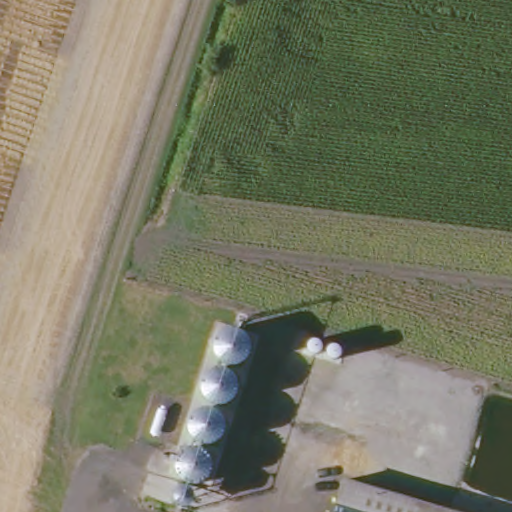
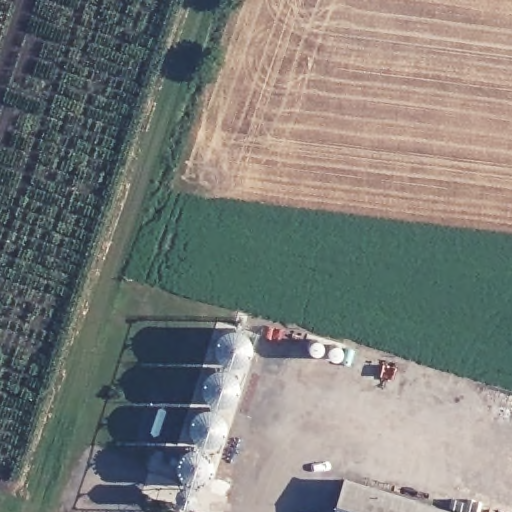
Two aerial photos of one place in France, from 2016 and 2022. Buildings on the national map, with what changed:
unchanged [(256,347),(254,353),(249,360),(244,363),(235,365),(227,363),(220,358),(217,352),(216,344),(219,334),(222,330),(228,326),(238,325),(246,328),(251,332),(254,337),(255,341),(256,347)]
unchanged [(244,385),(242,393),(237,399),(232,403),(225,405),(217,403),(209,398),(206,390),(206,380),(209,374),(212,370),(220,367),(226,366),(234,369),(239,373),(242,380),(244,385)]
unchanged [(230,419),(231,426),(230,431),(227,437),(223,441),(216,444),(209,445),(202,443),(196,437),(192,431),(192,425),(193,419),(197,413),(203,408),(211,406),(217,407),(225,411),(227,414),(230,419)]
unchanged [(217,462),(217,469),(215,476),(211,481),(203,485),(194,485),(186,480),(182,475),(180,469),(180,463),(182,457),(187,451),(192,448),(200,447),(209,449),(214,454),(217,462)]
unchanged [(401,494),(416,499),(412,512),(333,512),(343,478),(401,494)]
unchanged [(412,512),(416,499),(461,512),(412,512)]

